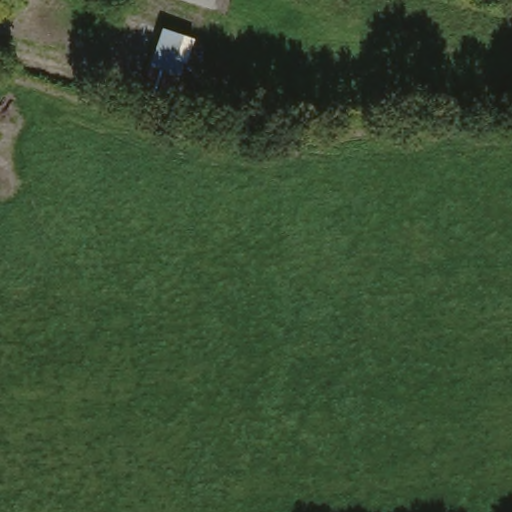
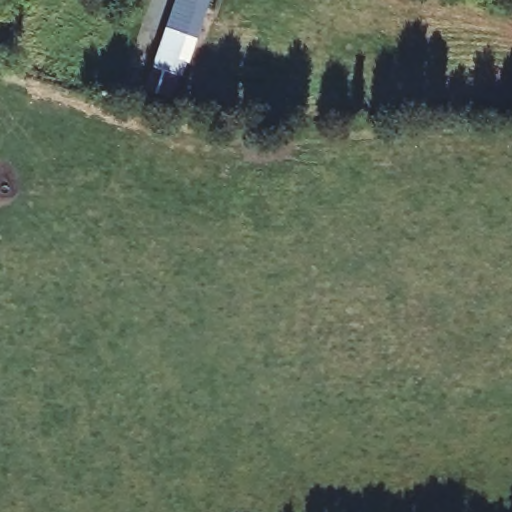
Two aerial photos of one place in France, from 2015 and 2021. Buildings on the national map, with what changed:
new [(195,42),(162,30),(171,0),(209,0),(195,42)]
unchanged [(181,80),(148,69),(162,30),(195,42),(181,80)]
unchanged [(170,101),(142,92),(148,69),(177,79),(170,101)]

